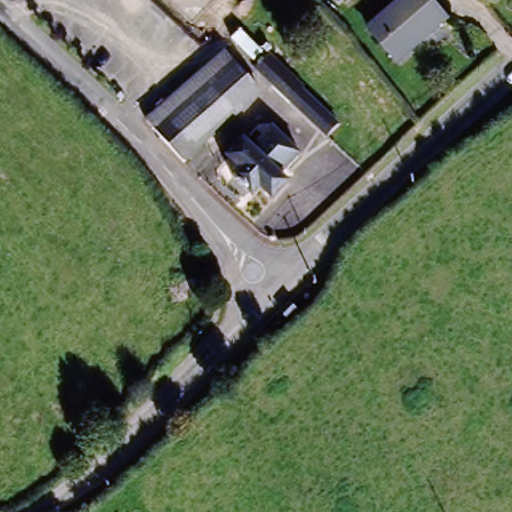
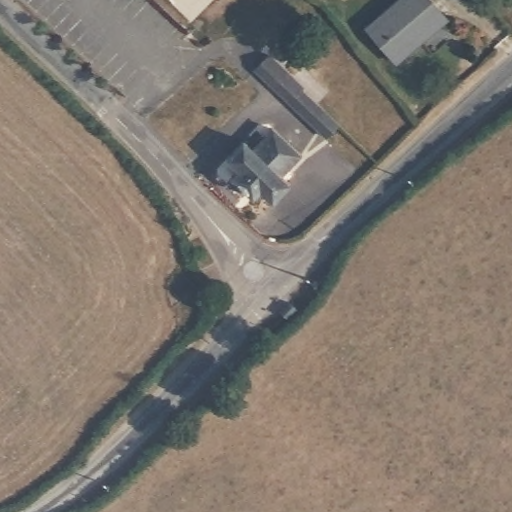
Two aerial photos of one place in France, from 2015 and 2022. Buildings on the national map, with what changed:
unchanged [(395,69),(368,39),(412,0),(420,0),(443,26),(395,69)]
demolished [(260,95),(179,164),(143,127),(222,55),(260,95)]
unchanged [(252,72),(268,57),(298,89),(295,91),(328,126),(315,138),(282,103),(252,72)]
unchanged [(283,180),(291,188),(275,206),(261,194),(253,202),(233,183),(240,176),(225,161),(251,135),(261,124),(270,132),(301,162),(283,180)]
unchanged [(208,297),(190,304),(178,308),(170,289),(199,277),(208,297)]

